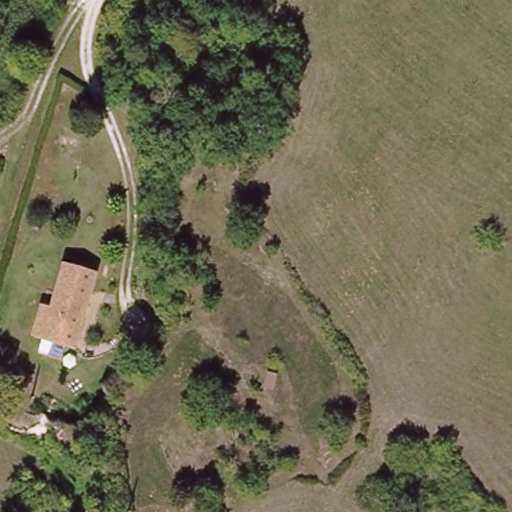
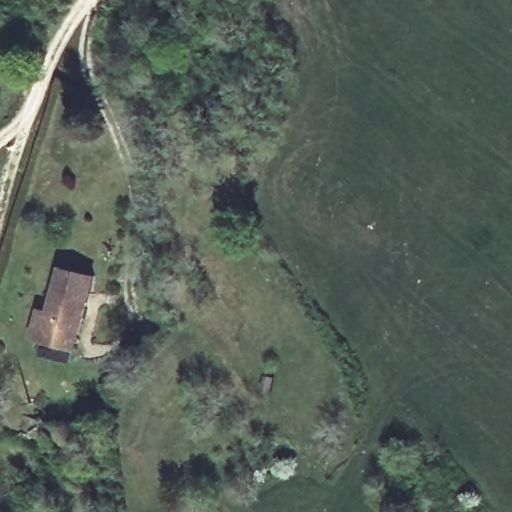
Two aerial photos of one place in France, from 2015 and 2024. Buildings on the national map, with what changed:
unchanged [(46,312),(58,271),(88,280),(66,355),(26,343),(36,309),(46,312)]

